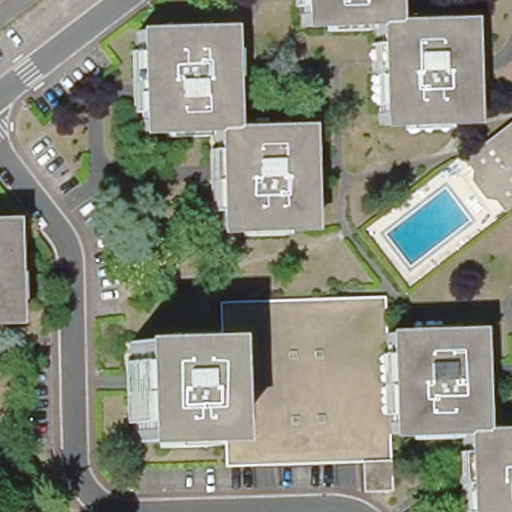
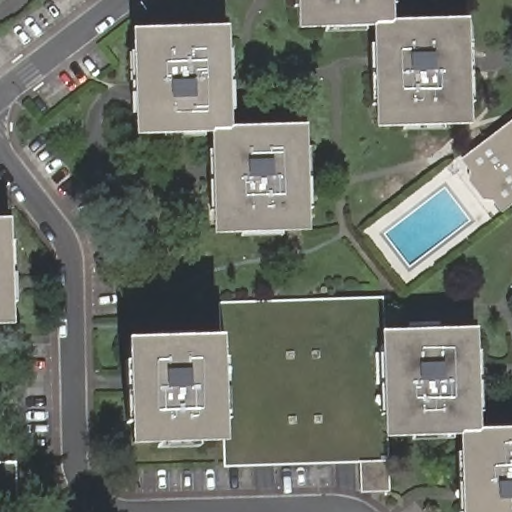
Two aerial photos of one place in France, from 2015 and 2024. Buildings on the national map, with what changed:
unchanged [(325,26),(299,27),(298,5),(291,5),(291,0),(395,0),(388,0),(389,23),(373,24),(366,24),(366,31),(325,33),(325,26)]
unchanged [(404,130),(404,123),(378,124),(377,104),(370,105),(367,42),(374,42),(373,24),(389,23),(400,23),(400,16),(440,14),(441,21),(466,20),(466,38),(472,37),(472,58),(473,79),(474,99),(468,99),(469,121),(444,122),(444,129),(404,130)]
unchanged [(162,135),(161,129),(138,130),(137,109),(129,110),(129,97),(128,66),(127,49),(135,48),(134,30),(156,29),(156,21),(199,19),(199,27),(223,26),(224,44),(231,45),(232,105),(226,105),(226,126),(213,126),(203,127),(203,133),(162,135)]
unchanged [(242,233),(242,228),(216,229),(215,207),(208,208),(208,189),(207,166),(206,147),(213,146),(213,126),(226,126),(237,125),(237,119),(278,118),(278,124),(304,122),(305,143),(311,143),(313,204),(307,204),(308,225),(282,226),(281,231),(242,233)]
unchanged [(459,163),(512,122),(512,200),(497,211),(489,201),(478,202),(465,184),(468,174),(459,163)]
unchanged [(6,238),(13,237),(15,298),(8,297),(9,319),(0,319),(0,219),(5,218),(6,238)]
unchanged [(360,491),(358,461),(225,465),(224,437),(223,417),(221,356),(221,337),(219,299),(383,294),(384,332),(385,351),(388,411),(389,433),(390,458),(391,490),(360,491)]
unchanged [(412,432),(389,433),(388,411),(385,351),(384,332),(409,331),(409,324),(450,323),(450,330),(475,329),(475,349),(483,349),(483,368),(484,388),(485,409),(477,410),(478,430),(463,431),(453,431),(453,437),(412,439),(412,432)]
unchanged [(158,439),(133,440),(132,419),(125,420),(125,408),(124,382),(124,360),(131,360),(130,340),(155,339),(155,333),(196,331),(196,338),(221,337),(221,356),(223,417),(224,437),(199,438),(199,445),(158,446),(158,439)]
unchanged [(466,510),(458,510),(456,450),(464,449),(463,431),(478,430),(488,430),(488,423),(512,422),(512,512),(466,512),(466,510)]
unchanged [(14,506),(0,507),(0,462),(12,461),(14,506)]

